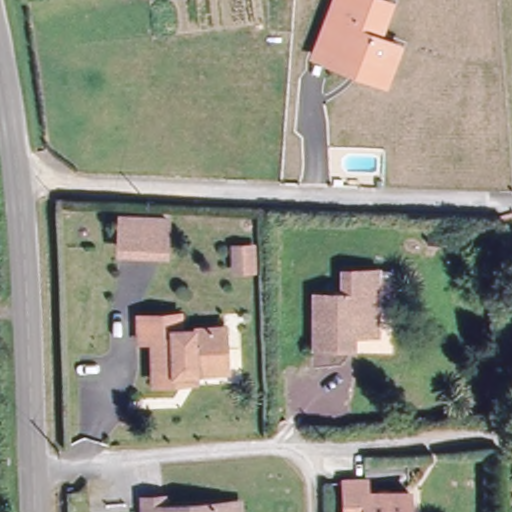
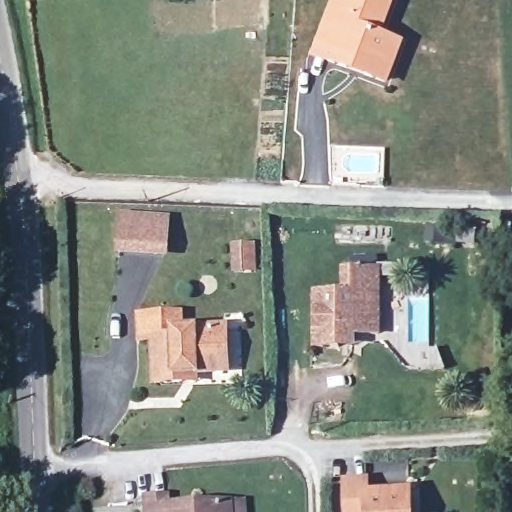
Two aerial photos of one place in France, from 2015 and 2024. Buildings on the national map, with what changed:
unchanged [(391,60),(383,80),(325,58),(313,54),(327,16),(333,0),(386,0),(387,0),(375,35),(385,39),(397,44),(391,60)]
unchanged [(173,224),(171,253),(122,247),(125,219),(173,224)]
unchanged [(353,330),(353,335),(338,335),(338,342),(318,342),(318,290),(345,290),(345,266),(378,266),(378,330),(353,330)]
unchanged [(179,379),(151,380),(151,337),(136,338),(135,313),(177,311),(178,328),(212,326),(222,325),(223,348),(223,368),(191,370),(192,378),(179,379)]
unchanged [(365,485),(365,495),(406,493),(407,512),(342,512),(341,485),(365,485)]
unchanged [(161,497),(161,506),(224,503),(240,503),(240,512),(143,512),(142,497),(161,497)]

